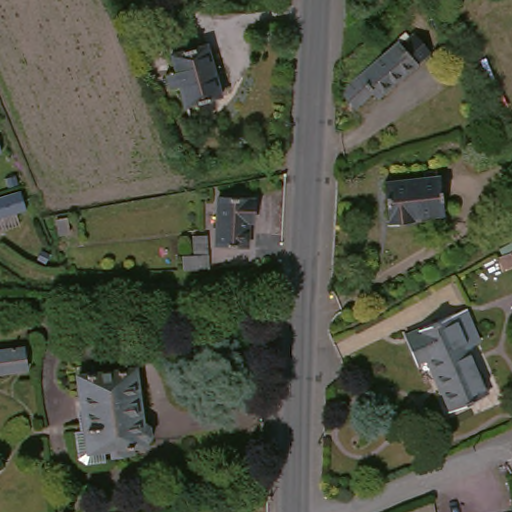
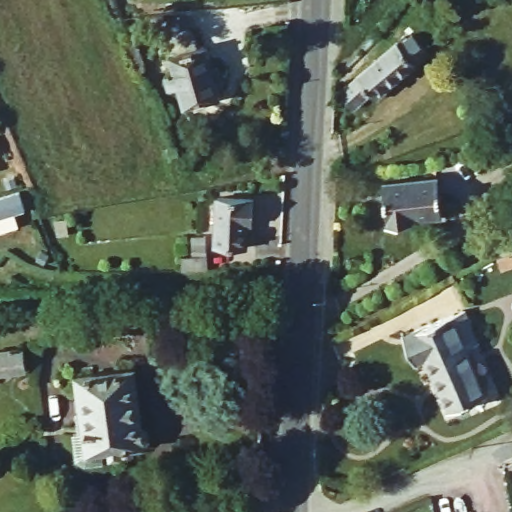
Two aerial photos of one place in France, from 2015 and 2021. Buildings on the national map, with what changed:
unchanged [(218,95),(181,100),(178,83),(168,85),(165,66),(173,65),(171,49),(165,50),(163,32),(198,28),(201,44),(209,42),(218,95)]
unchanged [(413,40),(428,64),(368,99),(366,94),(345,107),(333,83),(394,46),(396,50),(413,40)]
unchanged [(435,212),(411,214),(411,222),(383,224),(383,182),(434,180),(435,212)]
unchanged [(252,204),(252,227),(245,227),(245,248),(216,248),(216,203),(252,204)]
unchanged [(179,255),(188,255),(189,237),(208,236),(204,272),(179,272),(179,255)]
unchanged [(464,307),(493,380),(438,402),(419,356),(406,362),(394,333),(464,307)]
unchanged [(29,367),(0,374),(0,354),(24,348),(29,367)]
unchanged [(144,450),(103,455),(105,463),(78,467),(73,433),(84,432),(77,370),(92,368),(93,375),(133,370),(144,450)]

